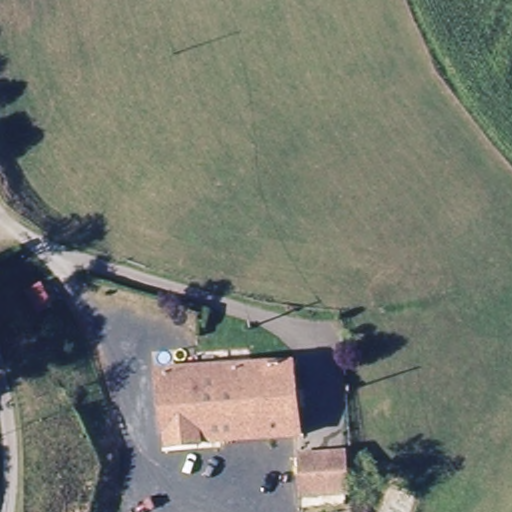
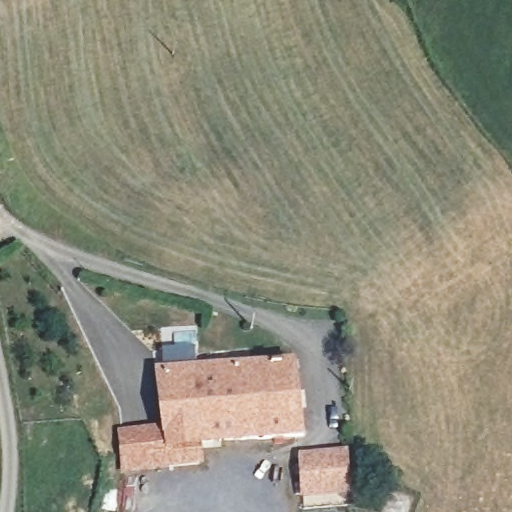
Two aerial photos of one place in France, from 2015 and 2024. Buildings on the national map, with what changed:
unchanged [(302,434),(201,443),(196,366),(204,366),(296,359),(302,434)]
unchanged [(171,446),(167,367),(196,366),(201,443),(171,446)]
new [(169,400),(171,446),(201,443),(202,465),(120,474),(116,428),(158,425),(154,367),(167,367),(169,400)]
unchanged [(329,496),(300,498),(297,454),(342,449),(345,494),(329,496)]

